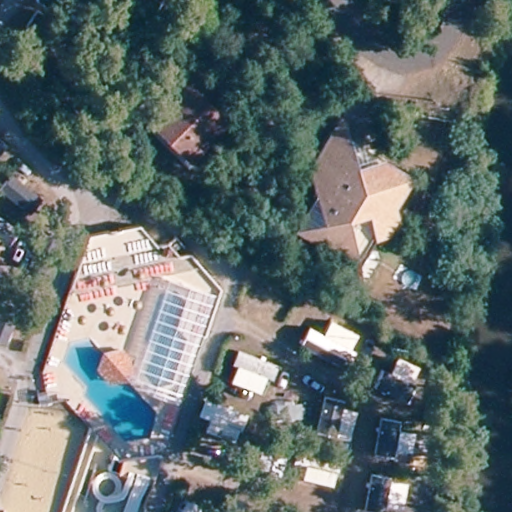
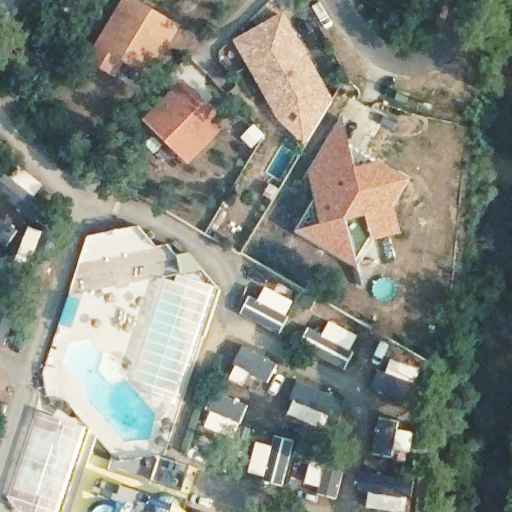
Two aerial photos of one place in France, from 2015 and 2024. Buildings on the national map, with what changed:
new [(182,24),(153,77),(127,62),(118,77),(89,62),(122,0),(139,0),(182,24)]
unchanged [(421,8),(418,22),(400,18),(404,3),(421,8)]
new [(283,9),(335,98),(303,145),(276,117),(232,39),(283,9)]
unchanged [(150,116),(183,83),(200,101),(221,122),(211,132),(188,154),(150,116)]
unchanged [(391,191),(402,237),(331,253),(303,236),(326,230),(320,209),(313,185),(352,127),(358,152),(383,168),(412,187),(391,191)]
unchanged [(253,278),(278,294),(262,322),(237,304),(253,278)]
unchanged [(347,331),(330,361),(306,344),(319,316),(347,331)]
unchanged [(233,342),(275,357),(269,376),(228,359),(233,342)]
unchanged [(414,362),(407,378),(417,383),(408,397),(372,376),(378,366),(387,370),(394,354),(414,362)]
unchanged [(271,377),(286,377),(283,392),(298,395),(294,413),(279,410),(277,421),(262,418),(271,377)]
unchanged [(207,407),(198,403),(203,392),(240,407),(230,434),(201,423),(207,407)]
unchanged [(344,410),(340,438),(317,434),(321,407),(344,410)]
unchanged [(378,418),(395,419),(393,433),(408,435),(406,455),(390,454),(389,461),(375,460),(378,418)]
unchanged [(266,436),(286,443),(275,476),(254,467),(266,436)]
unchanged [(307,475),(309,449),(334,451),(331,479),(307,475)]
unchanged [(369,457),(368,466),(384,466),(382,492),(366,490),(365,502),(349,501),(354,456),(369,457)]
unchanged [(178,496),(184,482),(207,489),(199,512),(173,512),(164,508),(170,493),(178,496)]
unchanged [(238,512),(220,512),(226,492),(242,498),(238,512)]

